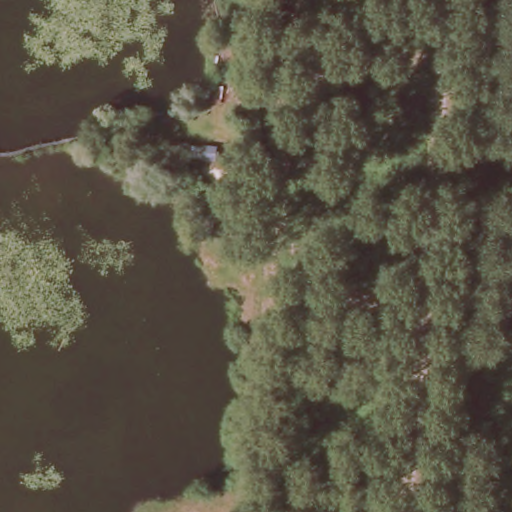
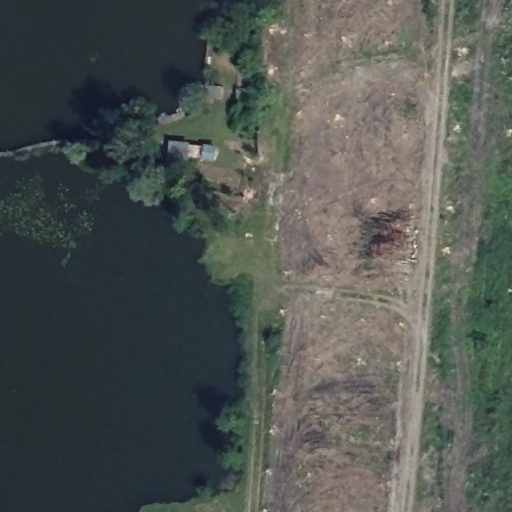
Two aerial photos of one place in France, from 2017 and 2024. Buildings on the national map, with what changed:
unchanged [(196,122),(198,143),(172,143),(170,122),(196,122)]

